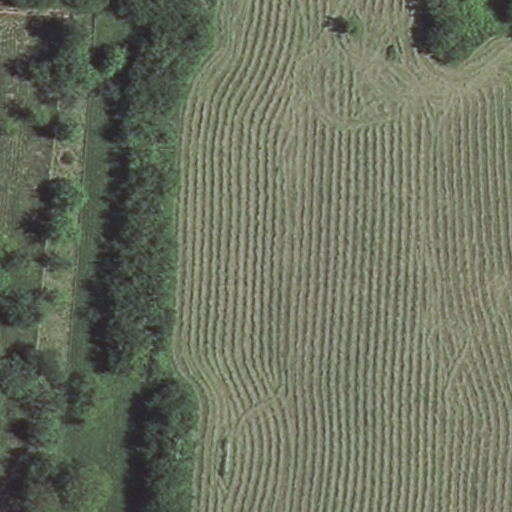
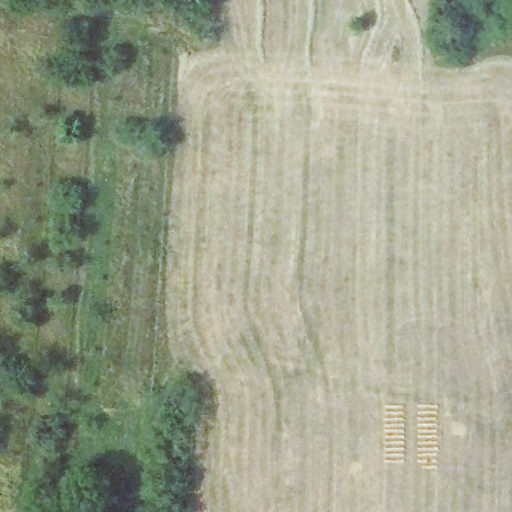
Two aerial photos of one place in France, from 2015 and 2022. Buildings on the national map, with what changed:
unchanged [(31,512),(31,510),(43,512),(31,512)]

